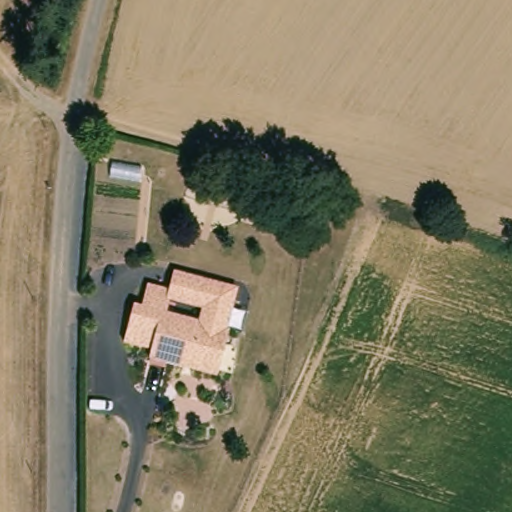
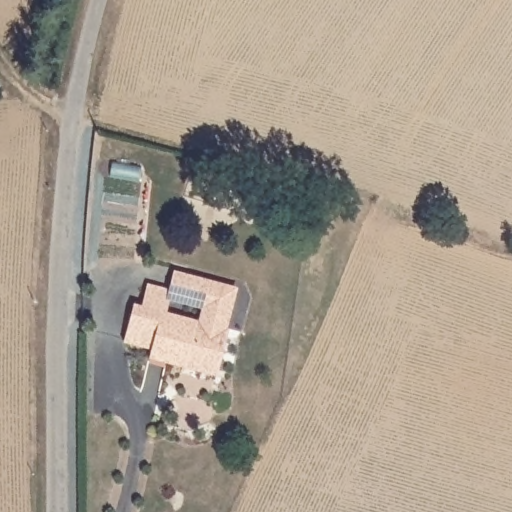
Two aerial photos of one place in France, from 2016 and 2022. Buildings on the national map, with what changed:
unchanged [(159,358),(162,349),(135,343),(144,305),(153,307),(158,285),(177,290),(247,307),(230,369),(228,376),(192,367),(159,358)]

